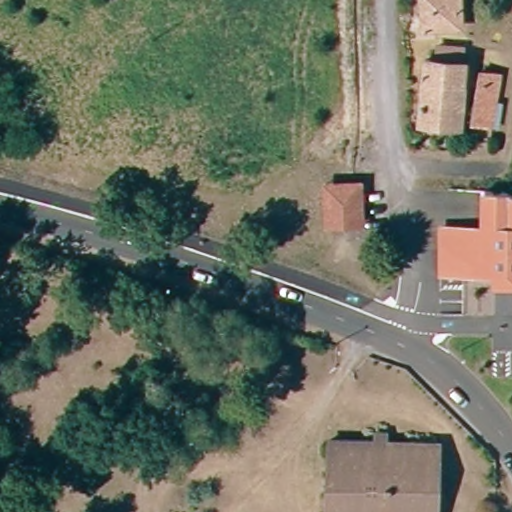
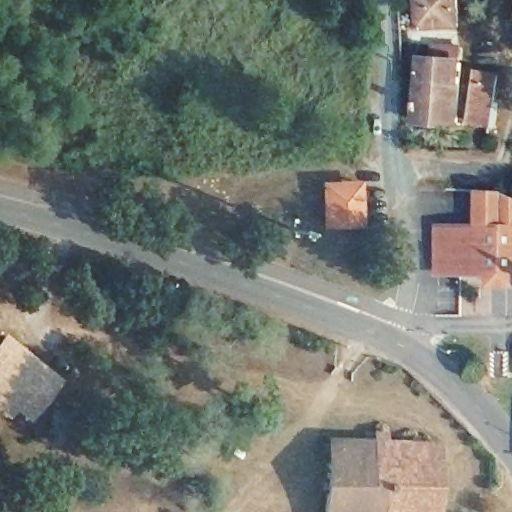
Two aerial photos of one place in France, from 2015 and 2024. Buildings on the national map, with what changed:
unchanged [(418,32),(416,0),(455,0),(457,31),(418,32)]
unchanged [(512,10),(512,19),(510,19),(512,10)]
unchanged [(410,125),(416,67),(455,71),(450,130),(426,127),(416,126),(410,125)]
unchanged [(482,129),(463,126),(470,79),(489,81),(482,129)]
unchanged [(349,222),(326,223),(325,190),(349,190),(349,222)]
unchanged [(494,276),(480,276),(455,276),(440,276),(440,231),(455,231),(482,231),(482,192),(504,194),(512,196),(512,288),(494,288),(494,276)]
new [(62,379),(25,424),(14,415),(8,421),(0,413),(0,336),(3,332),(62,379)]
unchanged [(380,441),(380,460),(394,461),(392,512),(323,512),(328,439),(371,441),(372,430),(380,429),(380,441)]
unchanged [(394,461),(380,460),(380,441),(435,444),(433,512),(392,512),(394,461)]

